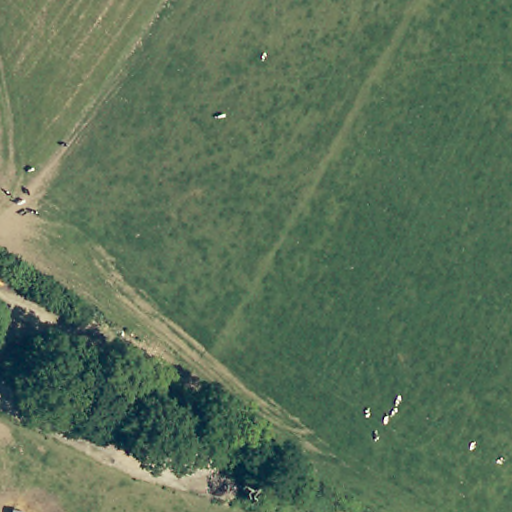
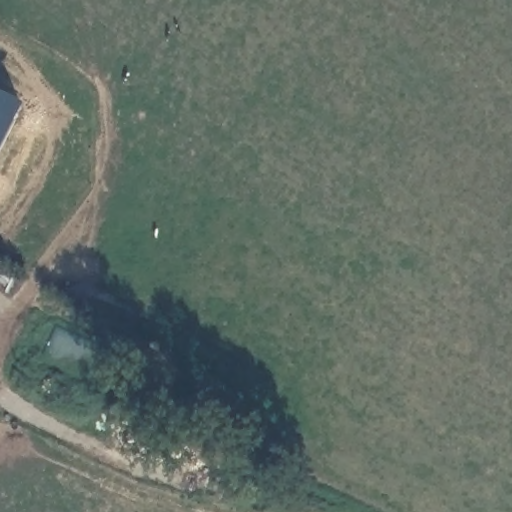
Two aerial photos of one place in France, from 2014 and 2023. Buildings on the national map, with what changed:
new [(0,158),(0,88),(28,102),(0,158)]

